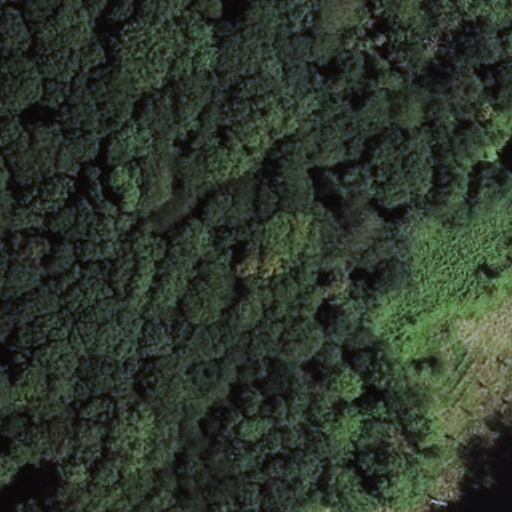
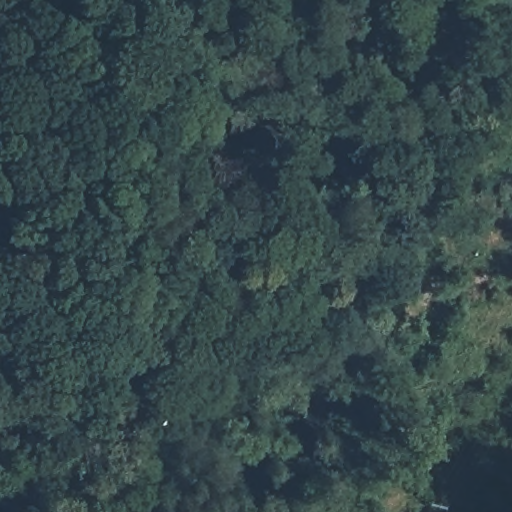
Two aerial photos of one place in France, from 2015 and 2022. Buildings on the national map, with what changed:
[]

